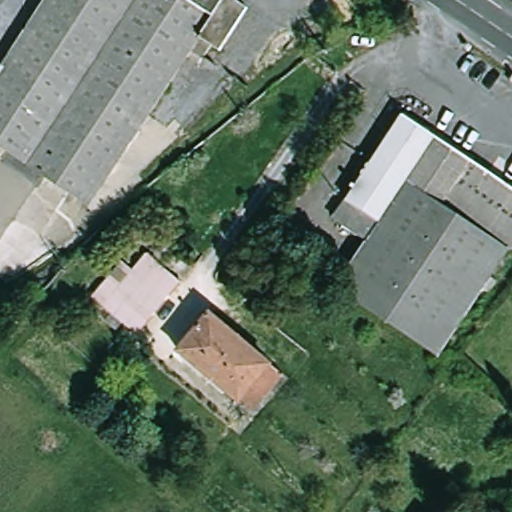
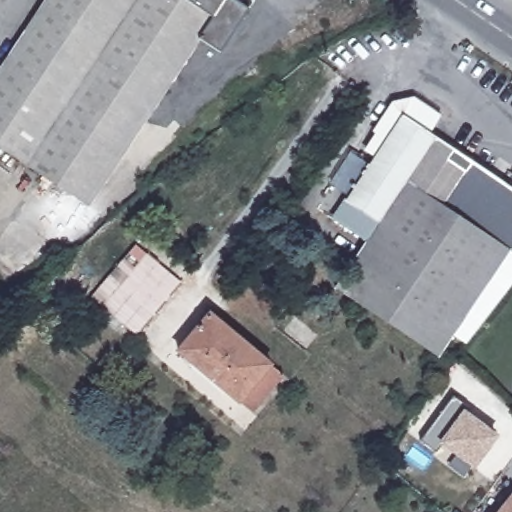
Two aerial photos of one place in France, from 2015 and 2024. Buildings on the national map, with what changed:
unchanged [(250,8),(223,50),(214,44),(206,57),(195,50),(93,203),(0,142),(0,78),(52,0),(238,0),(250,8)]
unchanged [(402,116),(395,127),(383,118),(390,108),(402,116)]
unchanged [(340,289),(346,280),(371,242),(339,221),(406,119),(512,188),(512,251),(444,356),(442,358),(340,289)]
unchanged [(114,309),(106,302),(149,250),(183,279),(140,330),(125,318),(123,321),(119,326),(108,316),(112,311),(114,309)]
unchanged [(238,397),(175,345),(206,308),(269,360),(281,371),(250,408),(238,397)]
new [(454,396),(468,407),(466,410),(500,436),(475,470),(439,444),(435,451),(421,440),(454,396)]
new [(497,512),(512,492),(512,512),(497,512)]

